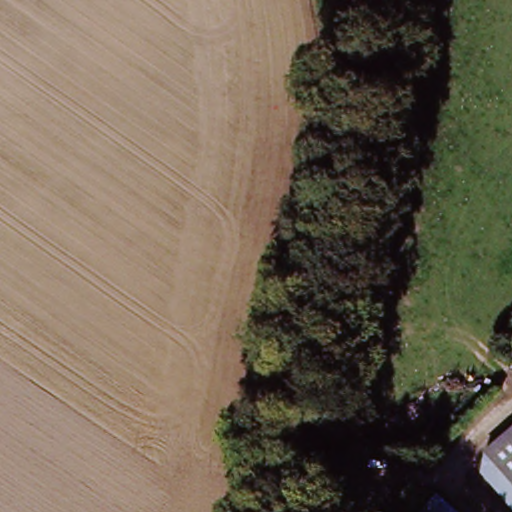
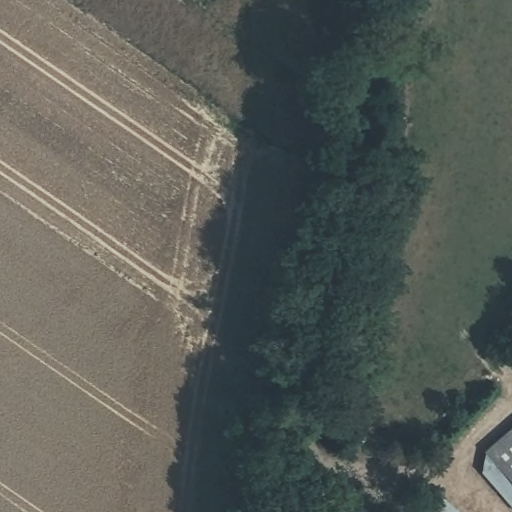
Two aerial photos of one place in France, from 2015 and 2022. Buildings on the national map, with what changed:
unchanged [(484,454),(512,429),(512,486),(484,454)]
unchanged [(462,512),(424,512),(441,492),(462,512)]

